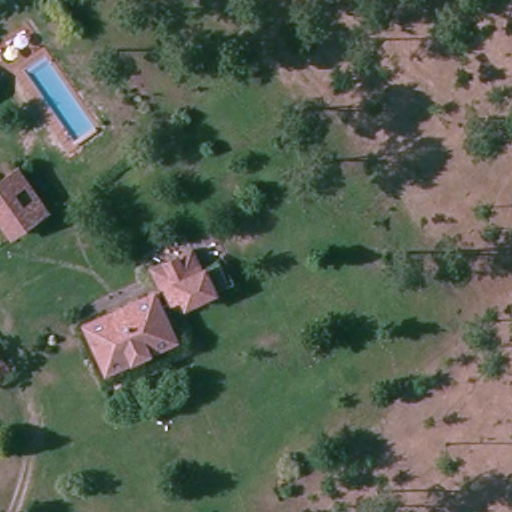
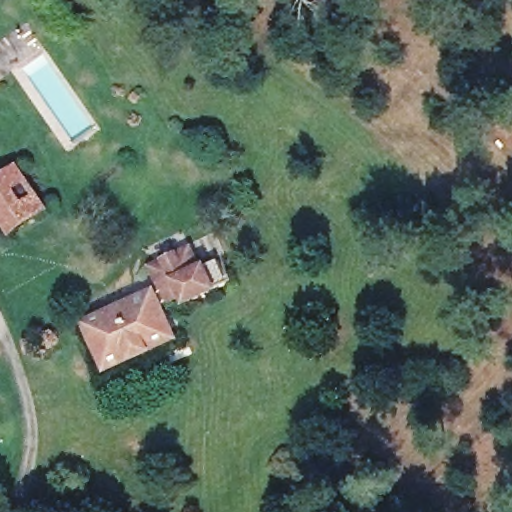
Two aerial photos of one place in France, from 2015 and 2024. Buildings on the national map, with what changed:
unchanged [(13,232),(0,216),(0,174),(10,165),(44,207),(13,232)]
unchanged [(187,249),(196,269),(215,260),(226,282),(184,303),(180,295),(159,306),(153,294),(160,290),(150,268),(187,249)]
unchanged [(104,370),(83,322),(151,291),(153,294),(159,306),(175,338),(104,370)]
unchanged [(17,410),(25,428),(0,440),(0,417),(17,410)]

